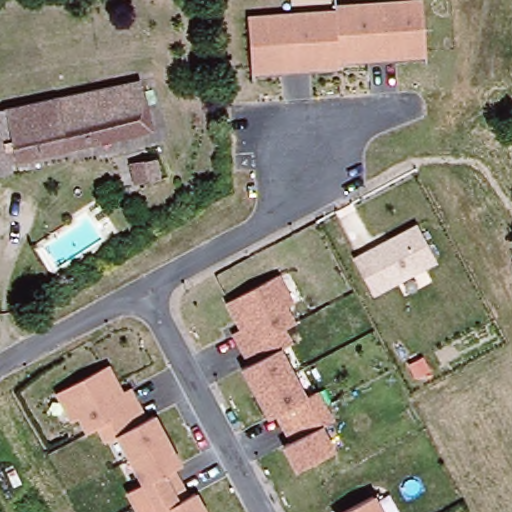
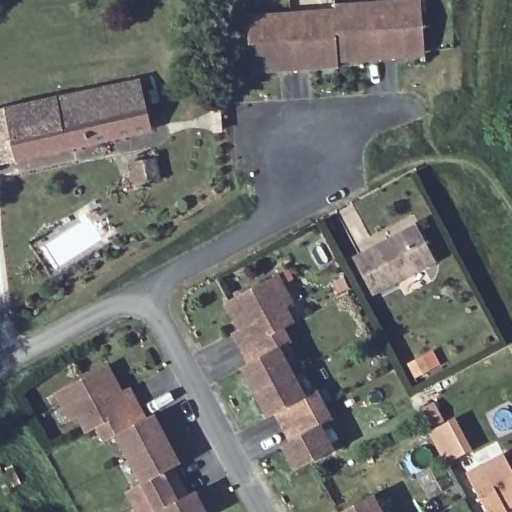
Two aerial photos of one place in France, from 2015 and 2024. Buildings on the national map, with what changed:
unchanged [(332,10),(332,2),(366,0),(420,0),(425,53),(338,60),(338,69),(249,74),(245,14),(332,10)]
unchanged [(126,82),(147,79),(155,125),(0,160),(0,106),(126,76),(126,82)]
unchanged [(168,182),(133,190),(129,170),(162,163),(168,182)]
unchanged [(354,258),(416,224),(435,258),(372,292),(354,258)]
unchanged [(290,439),(277,413),(265,420),(238,370),(248,363),(231,333),(238,327),(224,300),(281,270),(295,300),(285,306),(294,321),(284,326),(292,342),(279,348),(305,393),(317,388),(334,420),(323,425),(337,450),(293,472),(281,445),(290,439)]
unchanged [(134,512),(124,491),(138,483),(117,436),(103,442),(96,427),(83,433),(76,417),(68,420),(54,389),(110,361),(123,387),(130,384),(148,416),(156,412),(182,462),(175,467),(188,493),(196,490),(207,512),(157,512),(156,510),(154,512),(134,512)]
new [(449,421),(466,452),(450,461),(434,430),(449,421)]
new [(505,451),(512,464),(512,500),(512,512),(488,512),(466,472),(505,451)]
unchanged [(383,512),(340,512),(373,495),(383,512)]

